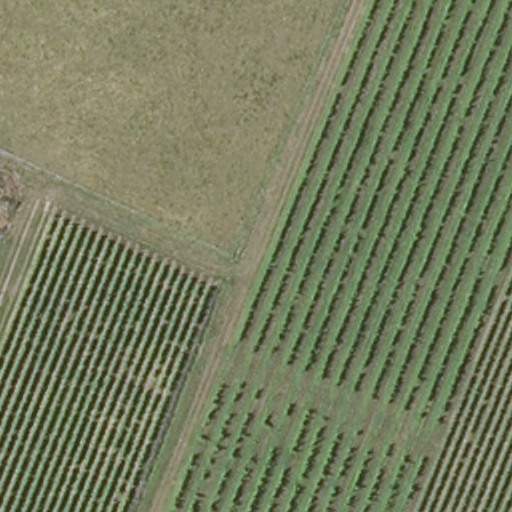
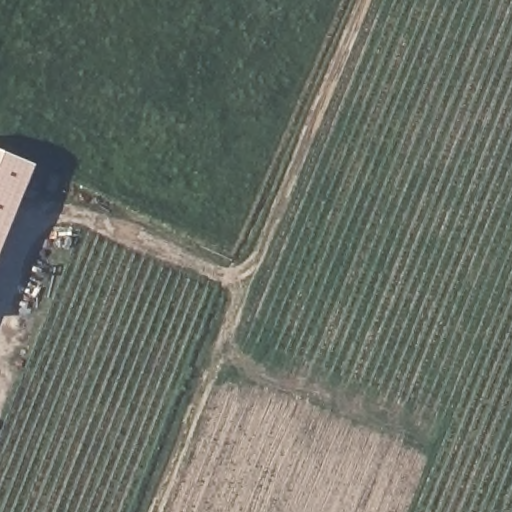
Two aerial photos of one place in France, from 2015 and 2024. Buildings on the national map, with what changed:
new [(0,239),(0,153),(29,165),(0,239)]

